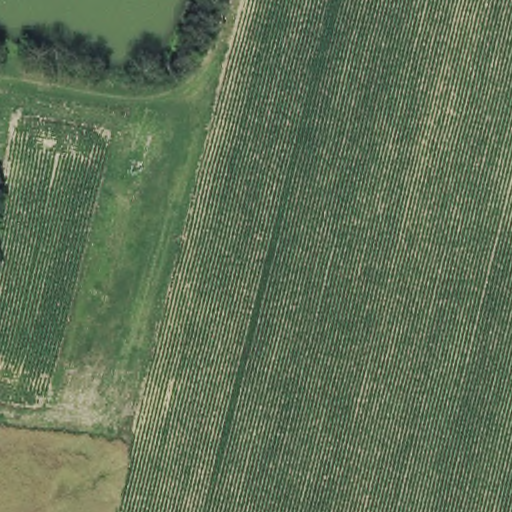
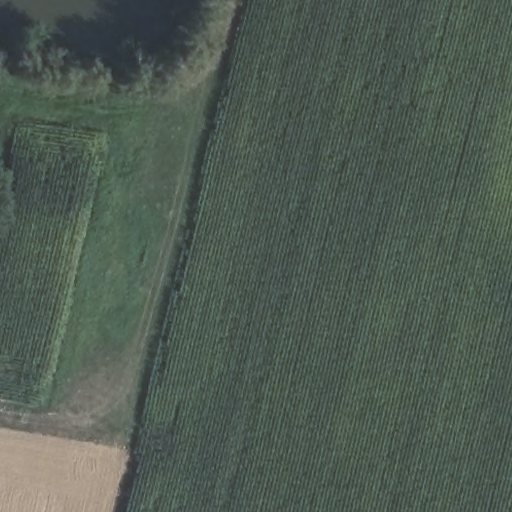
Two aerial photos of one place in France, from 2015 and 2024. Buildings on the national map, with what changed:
[]

